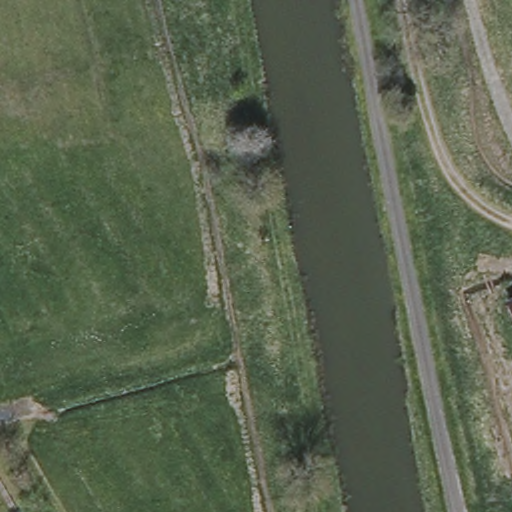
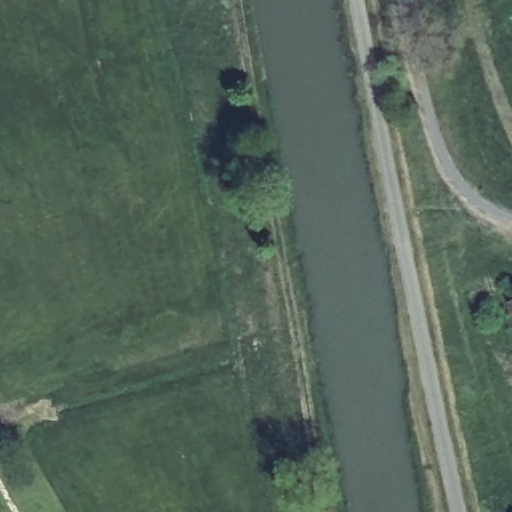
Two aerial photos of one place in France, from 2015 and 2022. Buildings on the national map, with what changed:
unchanged [(512,304),(512,317),(507,306),(512,304)]

